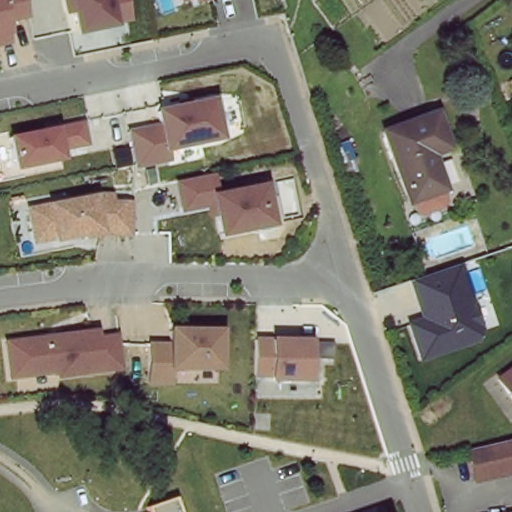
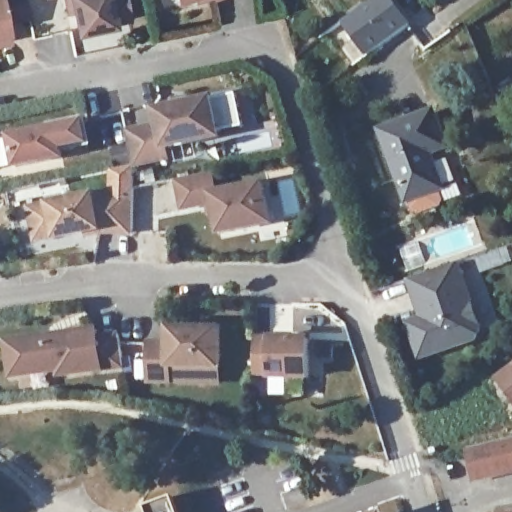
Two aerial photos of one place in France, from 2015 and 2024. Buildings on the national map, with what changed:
unchanged [(26,0),(30,15),(8,20),(11,42),(0,45),(0,0),(26,0)]
unchanged [(78,39),(70,0),(112,0),(120,31),(78,39)]
unchanged [(183,0),(197,0),(185,4),(183,0)]
unchanged [(198,0),(210,0),(200,4),(198,0)]
new [(395,0),(413,26),(368,58),(345,24),(375,0),(395,0)]
unchanged [(507,77),(504,58),(512,57),(512,84),(508,84),(507,77)]
unchanged [(135,172),(125,129),(161,123),(158,109),(220,97),(227,140),(187,149),(187,160),(135,172)]
unchanged [(380,134),(433,109),(450,149),(431,156),(445,192),(406,208),(380,134)]
unchanged [(88,119),(93,146),(70,151),(71,160),(21,169),(13,134),(88,119)]
unchanged [(223,241),(216,211),(187,215),(180,184),(217,175),(222,193),(272,184),(281,227),(223,241)]
unchanged [(116,202),(137,202),(135,239),(105,233),(39,245),(30,207),(115,193),(116,202)]
unchanged [(485,332),(480,342),(420,362),(407,323),(420,318),(410,284),(462,265),(485,332)]
unchanged [(57,381),(56,373),(7,379),(2,340),(99,329),(100,337),(120,333),(125,369),(57,381)]
unchanged [(168,340),(169,329),(227,330),(226,368),(175,368),(174,386),(150,387),(151,340),(168,340)]
unchanged [(267,378),(254,378),(253,340),(273,339),(311,339),(311,381),(267,378)]
unchanged [(512,377),(512,400),(501,385),(512,377)]
unchanged [(464,461),(461,451),(512,437),(512,471),(469,482),(464,461)]
unchanged [(145,507),(175,497),(179,512),(146,512),(145,507)]

